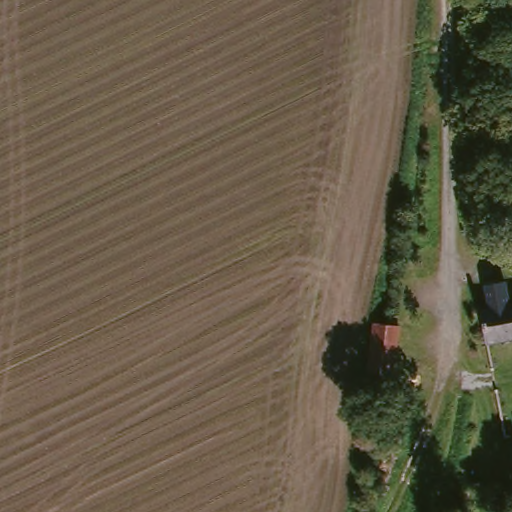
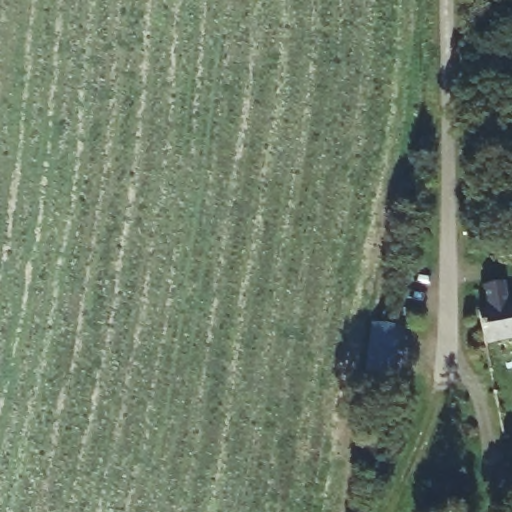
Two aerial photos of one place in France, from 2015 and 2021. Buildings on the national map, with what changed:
unchanged [(505,312),(512,311),(512,346),(485,351),(481,335),(478,318),(505,312)]
unchanged [(367,320),(394,322),(386,395),(362,392),(367,320)]
unchanged [(512,448),(512,468),(509,468),(508,468),(506,449),(512,448)]

